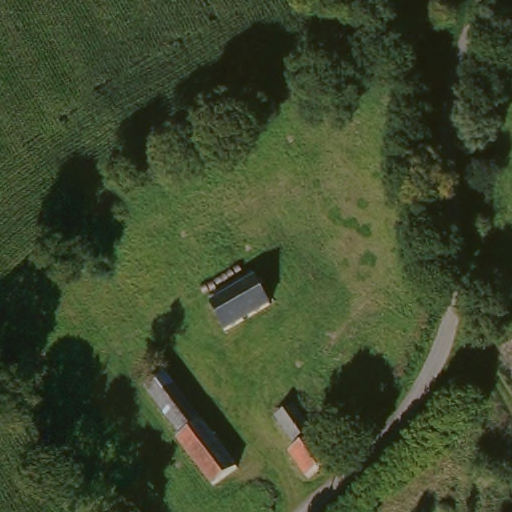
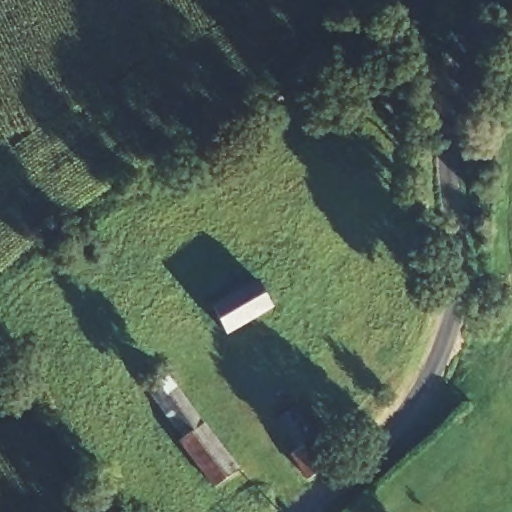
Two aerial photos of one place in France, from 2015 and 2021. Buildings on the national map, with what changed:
unchanged [(224,333),(207,304),(261,272),(278,301),(224,333)]
unchanged [(238,465),(212,484),(174,435),(180,430),(146,386),(167,371),(238,465)]
unchanged [(313,496),(298,472),(299,469),(279,435),(299,423),(336,481),(313,496)]

